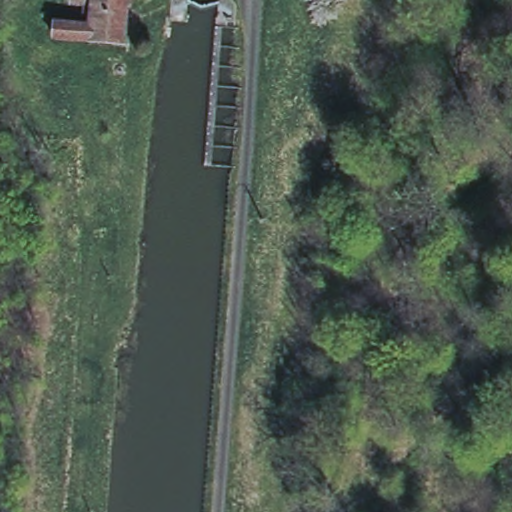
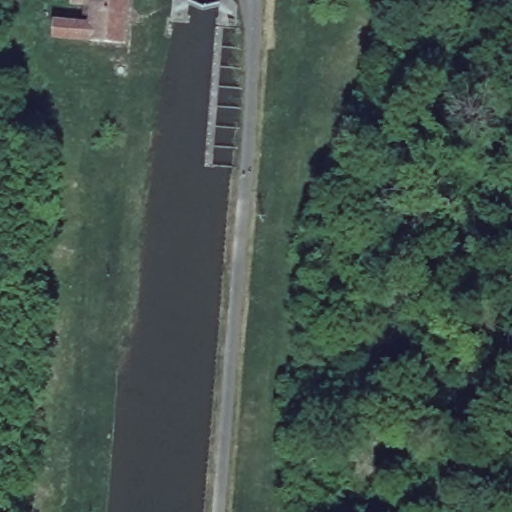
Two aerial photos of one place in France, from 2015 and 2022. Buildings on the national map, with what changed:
unchanged [(120,45),(74,43),(73,62),(39,60),(39,41),(54,41),(55,24),(91,25),(92,6),(56,4),(56,0),(126,0),(120,45)]

